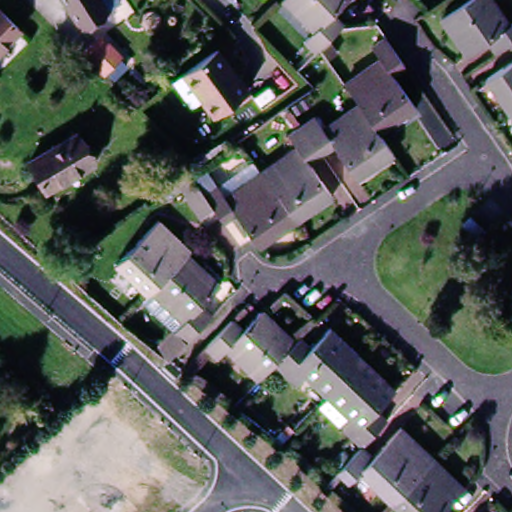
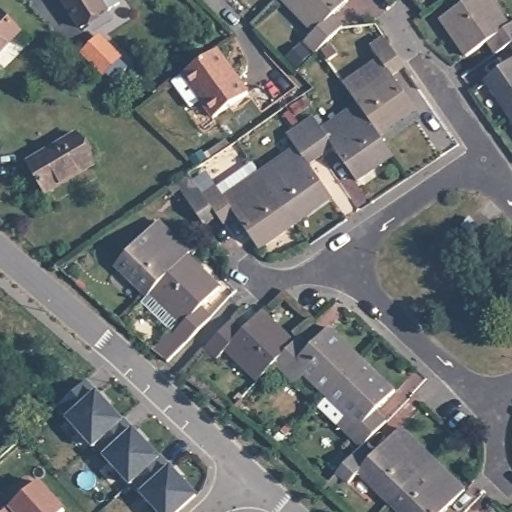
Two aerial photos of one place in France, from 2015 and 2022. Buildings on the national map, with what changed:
unchanged [(120,2),(88,24),(118,54),(103,69),(82,48),(91,39),(65,0),(119,0),(120,2)]
unchanged [(282,2),(284,0),(348,0),(332,16),(340,25),(317,47),(313,51),(312,51),(305,42),(313,33),(282,2)]
unchanged [(497,57),(488,44),(466,59),(441,24),(473,0),(486,0),(507,29),(512,26),(512,46),(510,47),(497,57)]
unchanged [(16,30),(0,46),(0,16),(16,30)]
unchanged [(356,103),(342,83),(378,58),(370,48),(384,38),(404,66),(390,75),(413,108),(376,133),(356,103)]
unchanged [(510,47),(512,46),(512,50),(510,47)]
unchanged [(217,49),(249,90),(216,116),(204,101),(207,99),(187,73),(217,49)]
unchanged [(487,84),(512,67),(512,118),(511,118),(487,84)]
unchanged [(376,133),(391,154),(353,180),(330,145),(319,153),(310,141),(299,125),(312,116),(320,128),(356,103),(376,133)]
unchanged [(511,118),(512,118),(512,120),(511,118)]
unchanged [(310,141),(319,153),(307,161),(331,195),(294,220),(259,170),(295,145),(286,134),(299,125),(310,141)]
unchanged [(26,163),(76,135),(93,164),(43,193),(26,163)]
unchanged [(257,246),(251,238),(234,213),(221,221),(215,212),(203,220),(183,191),(195,183),(201,192),(214,183),(222,195),(259,170),(294,220),(257,246)]
unchanged [(150,293),(147,296),(113,264),(155,219),(190,251),(186,254),(150,293)]
unchanged [(470,220),(485,236),(477,245),(462,228),(470,220)]
demolished [(18,240),(53,272),(42,285),(7,252),(18,240)]
unchanged [(186,254),(220,287),(200,306),(210,317),(184,344),(173,333),(182,324),(150,293),(186,254)]
unchanged [(274,362),(259,378),(226,348),(217,357),(207,348),(230,323),(232,321),(241,330),(258,312),(261,309),(294,341),(274,362)]
unchanged [(284,373),(274,362),(294,341),(300,335),(309,345),(328,326),(360,357),(358,359),(326,393),(303,371),(293,381),(284,373)]
unchanged [(348,415),(326,393),(358,359),(360,357),(394,389),(375,409),(385,419),(362,444),(360,446),(349,434),(339,424),(348,415)]
new [(92,448),(68,421),(70,420),(59,408),(86,384),(121,423),(96,445),(92,448)]
new [(123,421),(158,460),(129,486),(105,459),(107,457),(96,445),(121,423),(123,421)]
unchanged [(373,455),(400,426),(432,456),(464,486),(438,512),(398,512),(389,503),(389,502),(358,473),(347,482),(336,472),(360,446),(362,444),(373,455)]
new [(195,498),(180,512),(156,512),(142,496),(144,495),(133,482),(158,460),(159,458),(195,498)]
new [(11,510),(38,485),(63,512),(10,512),(11,510)]

